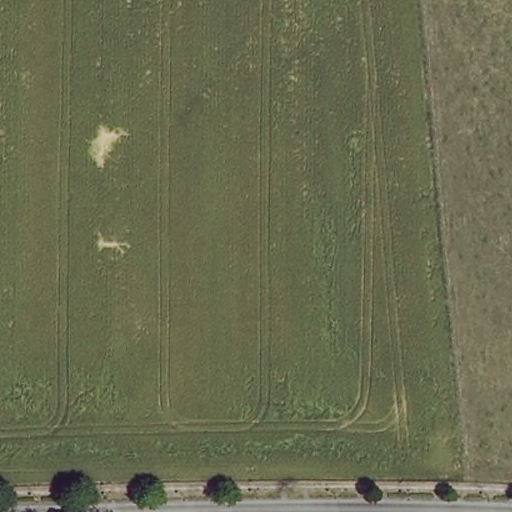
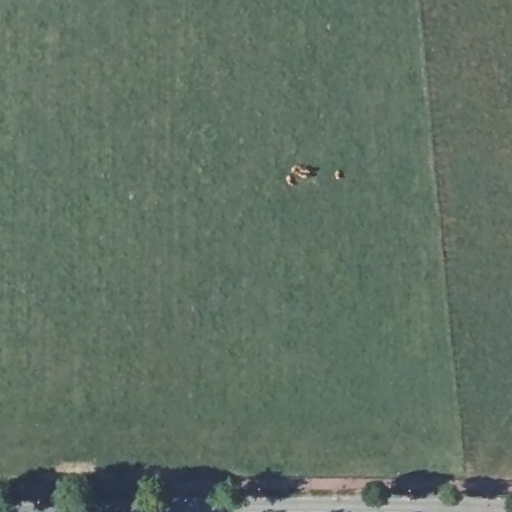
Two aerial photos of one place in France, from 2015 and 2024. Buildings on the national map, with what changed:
[]

